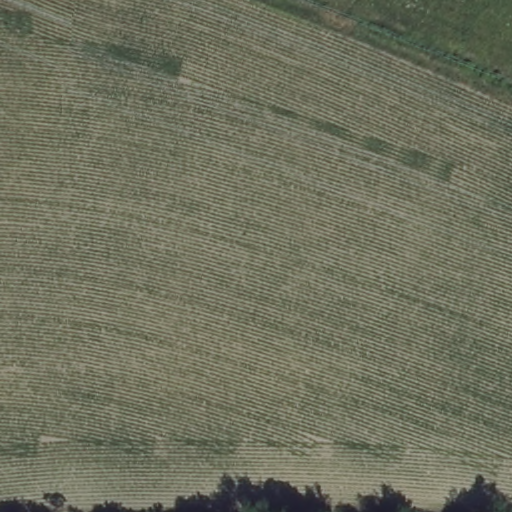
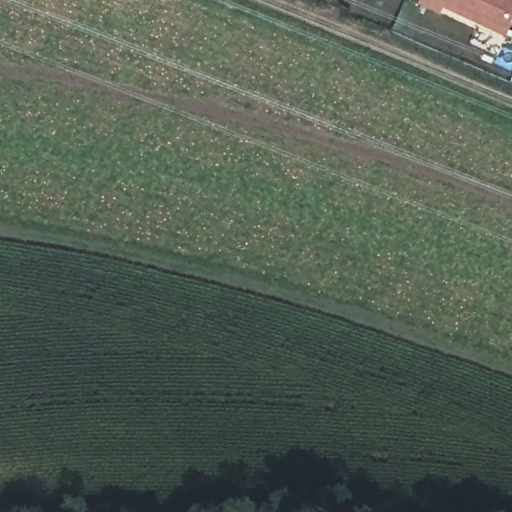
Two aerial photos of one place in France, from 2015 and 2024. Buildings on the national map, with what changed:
new [(512,0),(512,26),(506,38),(443,10),(440,15),(420,6),(423,0),(512,0)]

